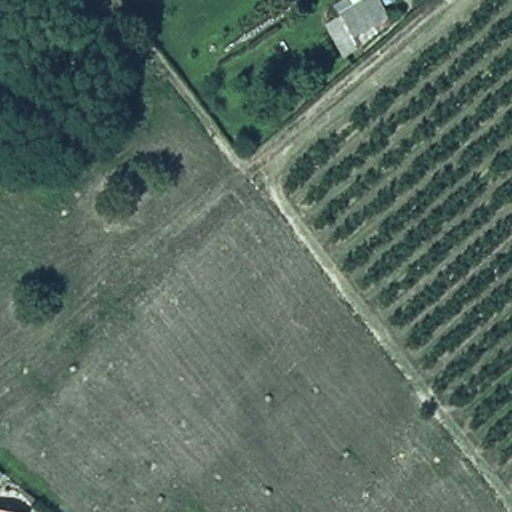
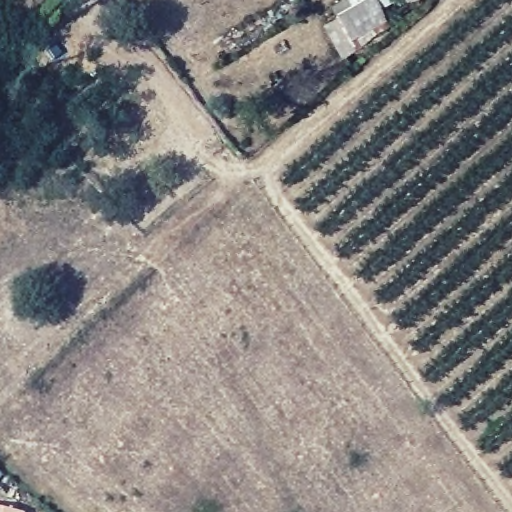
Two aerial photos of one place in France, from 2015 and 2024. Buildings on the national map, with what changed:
unchanged [(314,8),(334,0),(350,0),(351,2),(357,0),(380,0),(390,24),(340,58),(314,8)]

